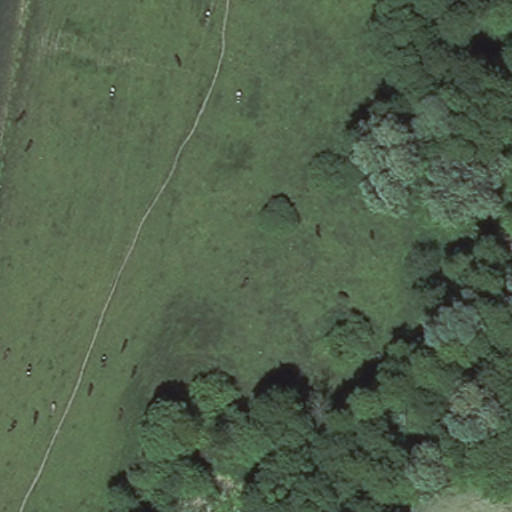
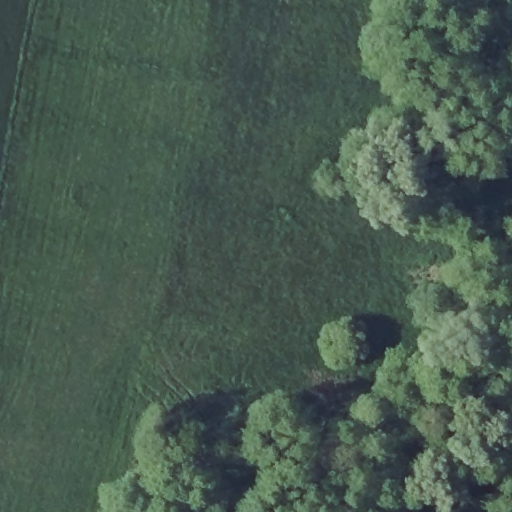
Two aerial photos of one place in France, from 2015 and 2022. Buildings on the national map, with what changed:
[]

